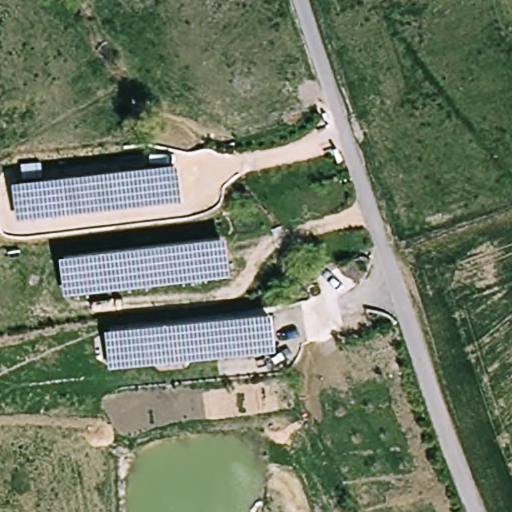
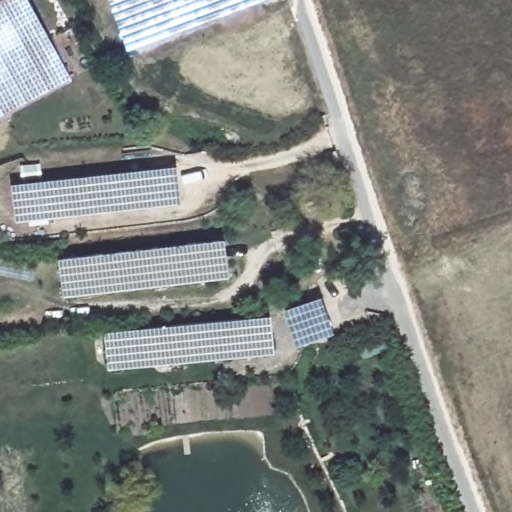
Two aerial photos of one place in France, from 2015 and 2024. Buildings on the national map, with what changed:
new [(29,0),(72,79),(0,118),(0,0),(29,0)]
new [(262,0),(128,51),(110,0),(262,0)]
unchanged [(19,223),(15,188),(174,167),(178,203),(19,223)]
unchanged [(220,238),(225,278),(66,298),(61,260),(220,238)]
new [(322,299),(334,335),(298,348),(286,311),(322,299)]
unchanged [(265,315),(269,349),(111,367),(107,334),(265,315)]

